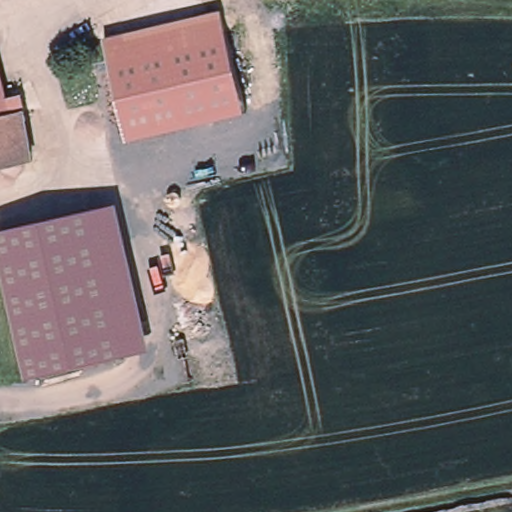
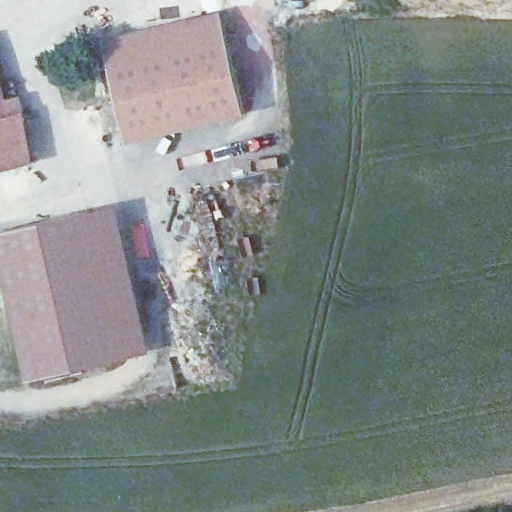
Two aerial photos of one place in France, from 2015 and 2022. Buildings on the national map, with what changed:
unchanged [(247,117),(128,145),(104,37),(223,10),(247,117)]
unchanged [(0,116),(0,80),(9,115),(0,116)]
unchanged [(22,111),(24,114),(34,164),(0,172),(0,116),(9,115),(22,111)]
unchanged [(2,251),(0,243),(0,232),(19,227),(92,209),(118,202),(155,348),(129,355),(35,380),(34,375),(4,259),(2,251)]

